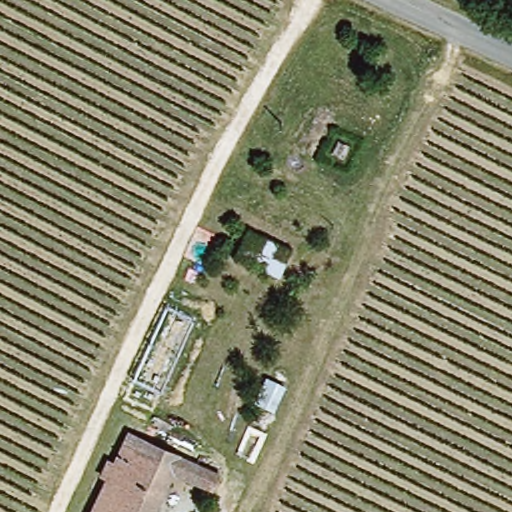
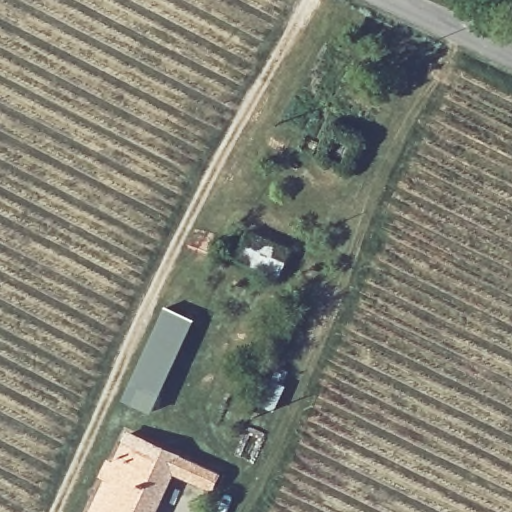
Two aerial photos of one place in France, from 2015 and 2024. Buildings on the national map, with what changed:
unchanged [(277,242),(275,255),(286,262),(277,278),(235,258),(247,229),(277,242)]
new [(170,308),(197,322),(155,413),(124,397),(157,333),(170,308)]
unchanged [(131,432),(223,476),(216,491),(178,473),(161,512),(99,512),(94,510),(131,432)]
unchanged [(99,512),(93,512),(94,510),(99,512)]

